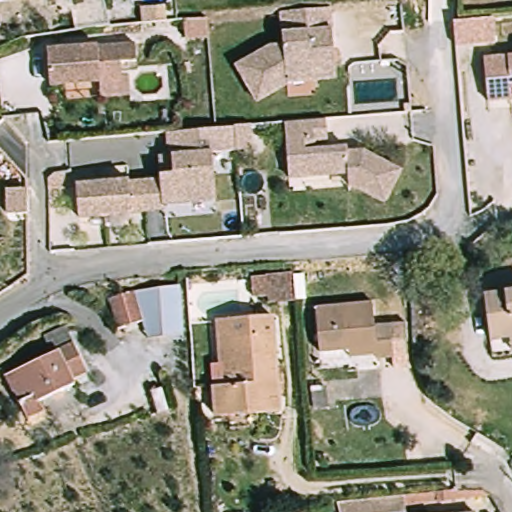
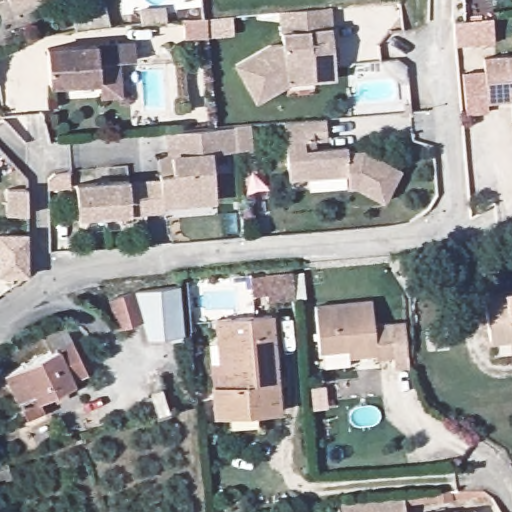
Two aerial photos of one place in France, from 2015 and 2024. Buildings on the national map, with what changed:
unchanged [(11,0),(13,0),(11,1),(11,0)]
unchanged [(261,104),(241,66),(276,49),(289,48),(286,15),(299,14),(336,11),(340,82),(316,84),(293,86),(261,104)]
unchanged [(489,21),(491,46),(451,49),(449,24),(489,21)]
unchanged [(141,41),(141,59),(105,62),(106,80),(56,85),(53,49),(141,41)]
unchanged [(493,105),(490,61),(512,60),(512,103),(493,105)]
unchanged [(295,171),(292,126),(333,123),(334,144),(321,145),(321,155),(354,152),(354,157),(370,156),(406,175),(390,206),(362,191),(355,191),(354,178),(313,181),(296,183),(295,171)]
unchanged [(217,127),(238,126),(239,151),(216,153),(218,199),(166,202),(166,216),(165,217),(165,210),(163,177),(163,172),(163,155),(173,155),(173,131),(213,128),(217,127)]
unchanged [(163,177),(165,210),(133,211),(133,179),(163,177)]
unchanged [(81,214),(80,181),(133,179),(133,211),(81,214)]
unchanged [(21,201),(21,216),(1,215),(2,190),(22,191),(21,201)]
new [(28,276),(0,276),(0,233),(28,233),(28,276)]
unchanged [(264,272),(295,271),(298,300),(270,302),(270,297),(256,298),(256,273),(264,272)]
unchanged [(188,334),(149,340),(146,328),(120,331),(113,300),(178,286),(188,334)]
unchanged [(493,338),(489,294),(512,291),(512,354),(495,356),(493,338)]
unchanged [(372,321),(389,321),(392,356),(371,359),(371,346),(319,348),(315,304),(371,301),(372,321)]
unchanged [(213,416),(212,390),(216,389),(212,322),(223,322),(272,318),(278,412),(213,416)]
unchanged [(83,369),(67,377),(70,384),(43,395),(46,402),(26,408),(6,373),(73,345),(83,369)]
unchanged [(404,496),(406,512),(344,512),(343,504),(404,496)]

